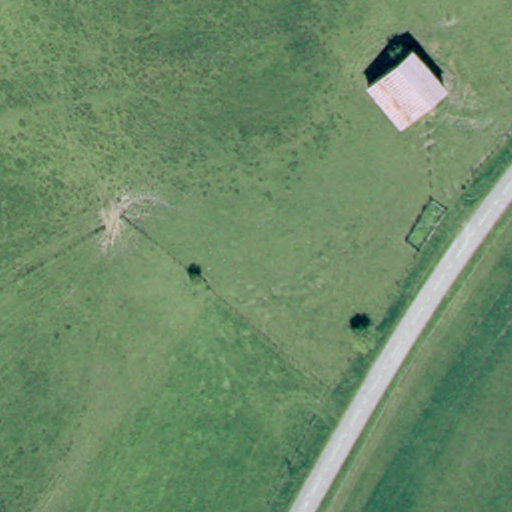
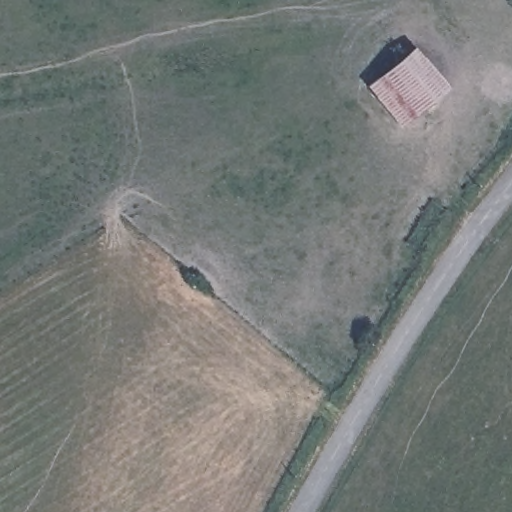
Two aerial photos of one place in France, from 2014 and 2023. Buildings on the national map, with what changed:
unchanged [(402,123),(368,84),(412,49),(445,88),(402,123)]

